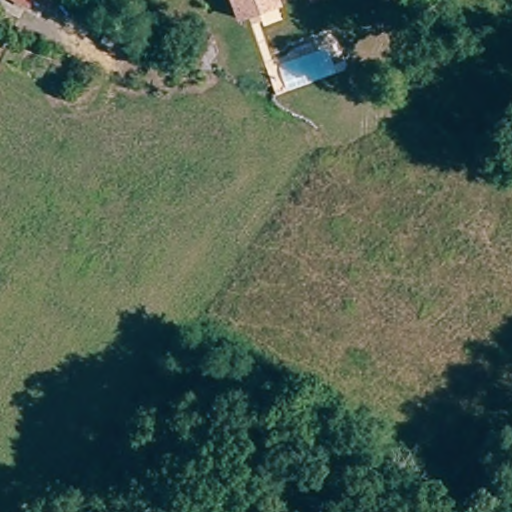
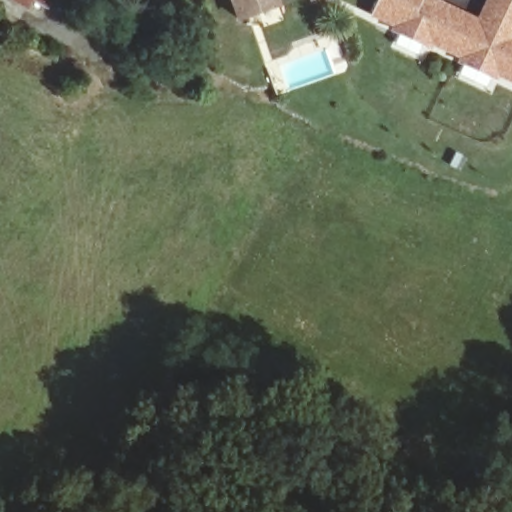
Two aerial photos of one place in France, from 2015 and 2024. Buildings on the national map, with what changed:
unchanged [(48,10),(36,4),(33,9),(17,0),(53,0),(48,10)]
unchanged [(258,8),(238,15),(233,0),(269,0),(271,3),(258,8)]
new [(371,0),(430,0),(473,21),(483,0),(510,0),(512,1),(512,86),(365,13),(371,0)]

